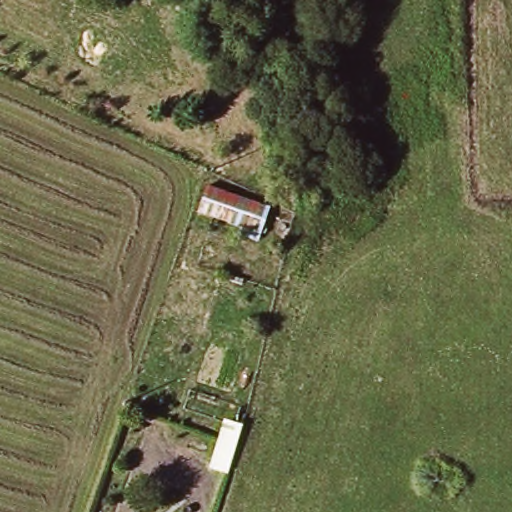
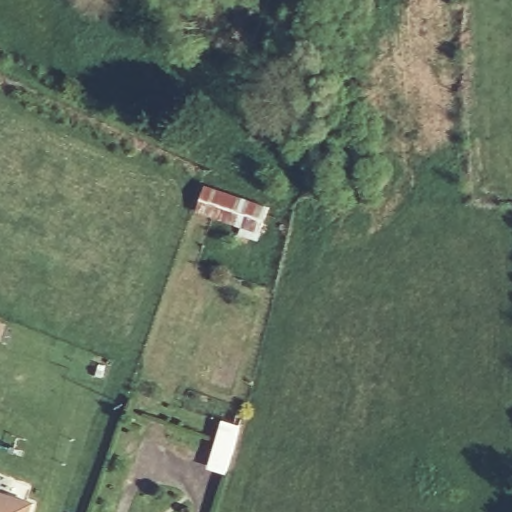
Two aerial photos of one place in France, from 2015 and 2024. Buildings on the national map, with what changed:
unchanged [(267,207),(258,241),(240,238),(242,231),(197,213),(207,188),(267,207)]
new [(33,512),(0,512),(0,490),(36,502),(33,512)]

